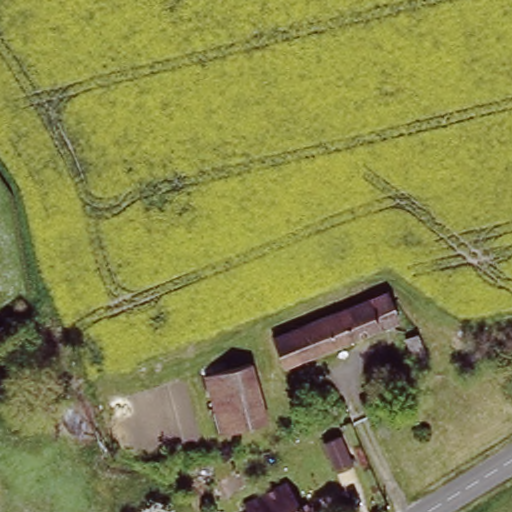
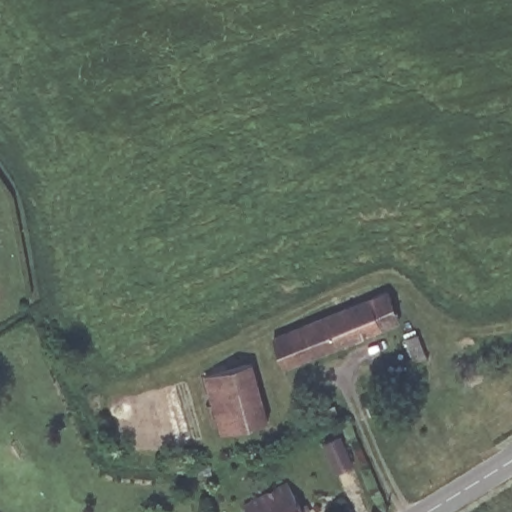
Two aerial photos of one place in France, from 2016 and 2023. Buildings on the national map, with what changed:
unchanged [(344,313),(369,303),(390,295),(401,325),(380,333),(285,369),(274,339),(312,325),(307,316),(340,304),(344,313)]
unchanged [(412,337),(422,361),(408,367),(399,342),(412,337)]
unchanged [(254,362),(272,422),(225,436),(207,376),(254,362)]
unchanged [(342,434),(353,461),(334,469),(322,443),(342,434)]
unchanged [(294,488),(307,512),(248,512),(294,488)]

